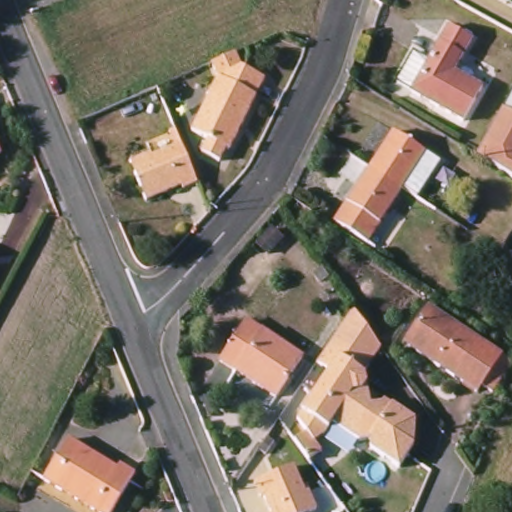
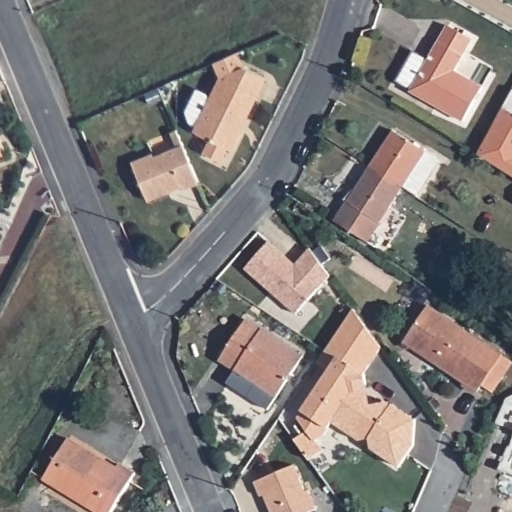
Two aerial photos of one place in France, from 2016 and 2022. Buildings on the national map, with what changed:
unchanged [(453,30),(478,44),(459,76),(488,93),(469,127),(415,96),(453,30)]
unchanged [(223,158),(217,171),(195,161),(204,141),(189,135),(215,79),(220,81),(222,76),(216,62),(230,56),(234,55),(240,70),(264,81),(226,159),(223,158)]
unchanged [(512,89),(512,177),(476,154),(512,89)]
unchanged [(179,186),(143,201),(127,161),(149,151),(151,157),(171,148),(166,134),(173,130),(179,145),(195,184),(181,190),(179,186)]
unchanged [(394,131),(441,160),(417,197),(415,196),(402,188),(370,167),(394,131)]
unchanged [(2,157),(0,158),(0,153),(2,157)]
unchanged [(368,242),(335,220),(370,167),(402,188),(368,242)]
new [(271,242),(297,266),(312,250),(332,277),(297,315),(247,269),(271,242)]
unchanged [(369,447),(369,437),(355,440),(334,420),(315,441),(321,451),(306,460),(294,441),(307,433),(297,415),(330,371),(316,360),(353,309),(381,348),(365,371),(371,405),(384,400),(416,420),(415,445),(398,465),(369,447)]
unchanged [(493,398),(481,391),(477,396),(404,349),(430,310),(503,358),(512,364),(512,370),(503,384),(493,398)]
unchanged [(304,360),(276,402),(220,366),(248,324),(304,360)]
unchanged [(118,471),(121,466),(137,476),(115,512),(95,512),(45,482),(71,442),(118,471)]
unchanged [(253,501),(247,487),(287,470),(298,497),(301,496),(308,512),(261,512),(256,500),(253,501)]

